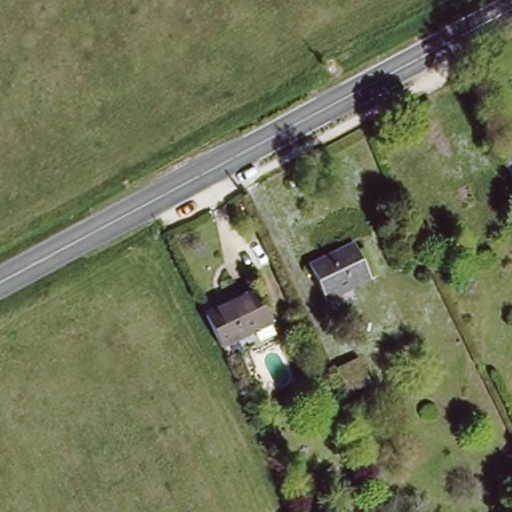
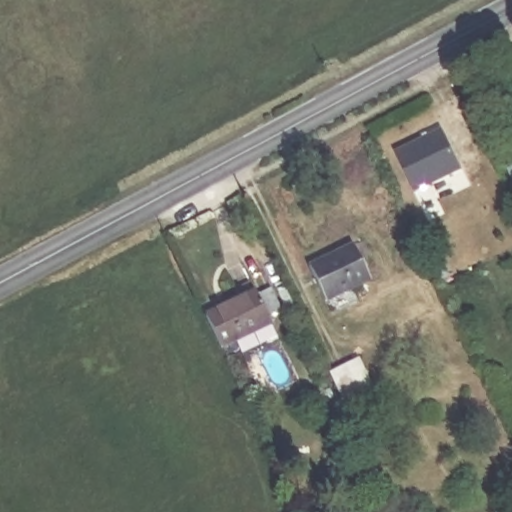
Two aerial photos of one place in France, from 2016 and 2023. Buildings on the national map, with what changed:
new [(444,128),(464,169),(415,192),(397,152),(444,128)]
unchanged [(512,158),(512,186),(501,164),(512,158)]
unchanged [(360,243),(376,275),(329,298),(313,267),(360,243)]
unchanged [(260,291),(274,319),(225,346),(211,317),(260,291)]
unchanged [(327,378),(356,362),(367,384),(337,400),(327,378)]

